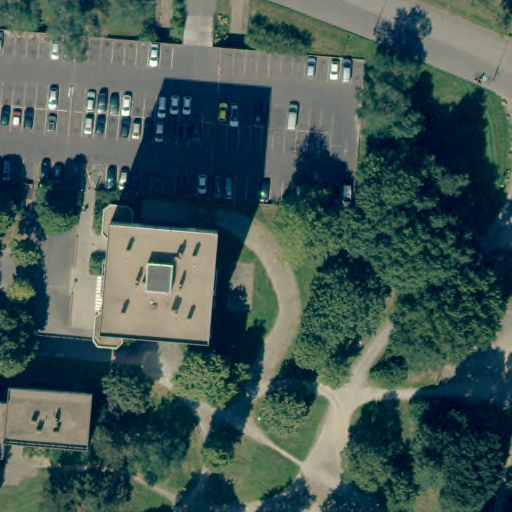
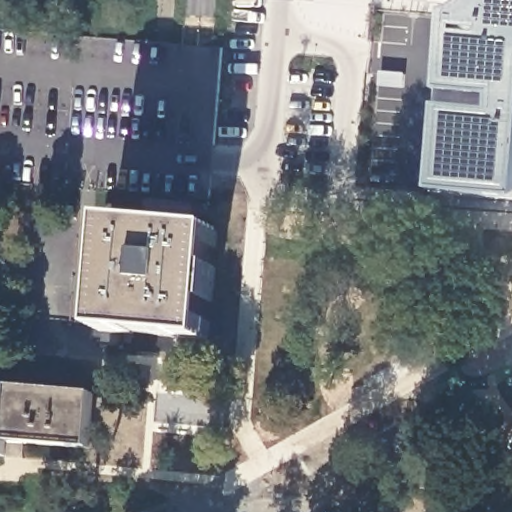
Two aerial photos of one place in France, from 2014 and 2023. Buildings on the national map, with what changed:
new [(451,18),(458,16),(466,12),(475,5),(477,0),(512,0),(512,199),(435,194),(451,18)]
unchanged [(117,342),(101,340),(99,340),(93,332),(96,308),(102,305),(105,305),(111,244),(112,235),(108,234),(104,227),(107,203),(113,198),(132,200),(138,206),(137,216),(181,220),(187,221),(220,224),(211,333),(134,326),(125,325),(123,335),(117,342)]
unchanged [(5,394),(7,380),(89,386),(84,442),(49,438),(2,434),(1,449),(0,449),(0,394),(5,394)]

